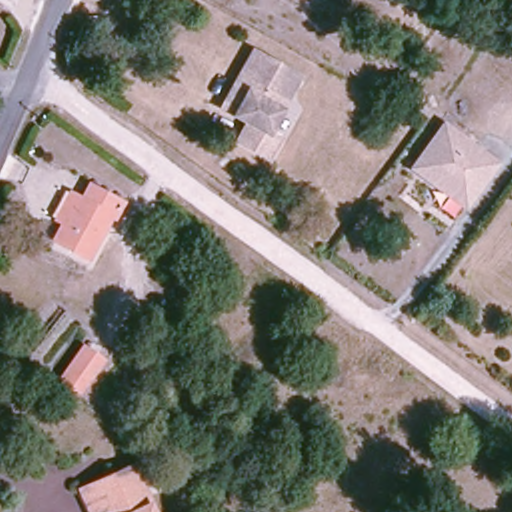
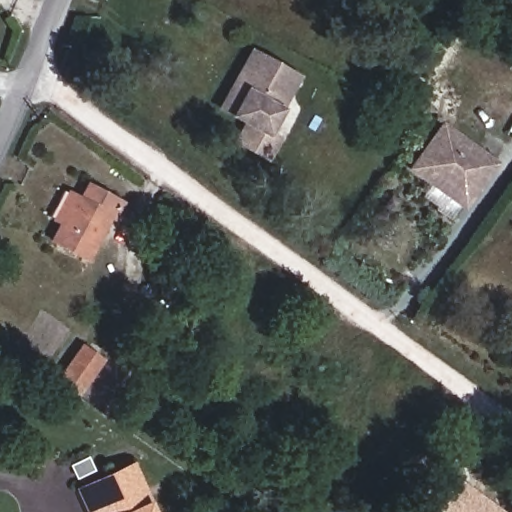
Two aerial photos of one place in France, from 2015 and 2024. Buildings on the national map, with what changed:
unchanged [(247,120),(240,116),(226,108),(258,50),(265,54),(302,73),(272,132),(284,138),(269,160),(243,143),(237,139),(247,120)]
unchanged [(465,211),(407,170),(443,120),(501,162),(465,211)]
unchanged [(92,182),(123,199),(93,259),(56,240),(65,224),(54,217),(69,187),(82,194),(85,194),(92,182)]
unchanged [(80,344),(97,356),(75,392),(56,378),(80,344)]
unchanged [(87,485),(141,466),(157,512),(97,512),(87,485)]
new [(436,509),(459,478),(504,512),(439,512),(436,509)]

